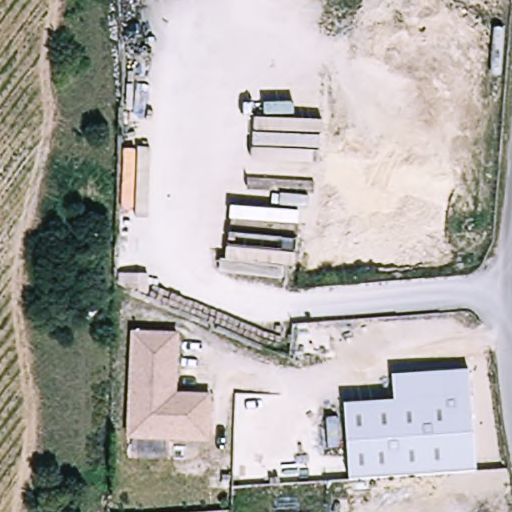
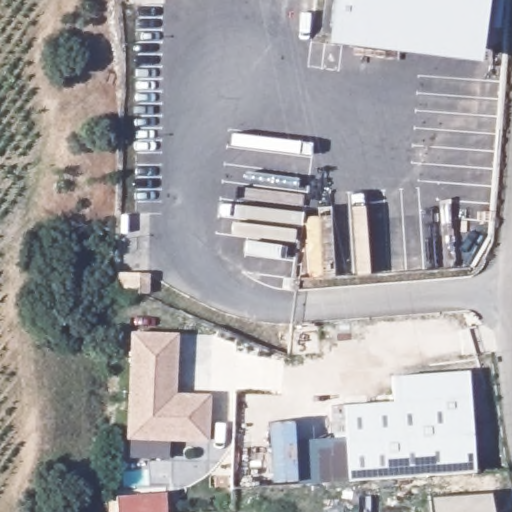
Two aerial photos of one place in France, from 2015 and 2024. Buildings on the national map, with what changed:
new [(480,60),(328,41),(333,0),(488,0),(480,60)]
unchanged [(131,275),(147,277),(145,290),(133,288),(125,285),(127,275),(131,275)]
unchanged [(174,438),(129,435),(137,331),(144,331),(182,334),(177,393),(213,396),(210,428),(209,441),(174,438)]
unchanged [(342,404),(392,401),(391,376),(468,370),(475,470),(347,479),(342,404)]
new [(342,404),(347,479),(297,483),(294,440),(334,437),(331,406),(342,404)]
new [(293,421),(297,483),(273,484),(270,420),(293,421)]
new [(491,494),(495,512),(432,512),(431,498),(491,494)]

